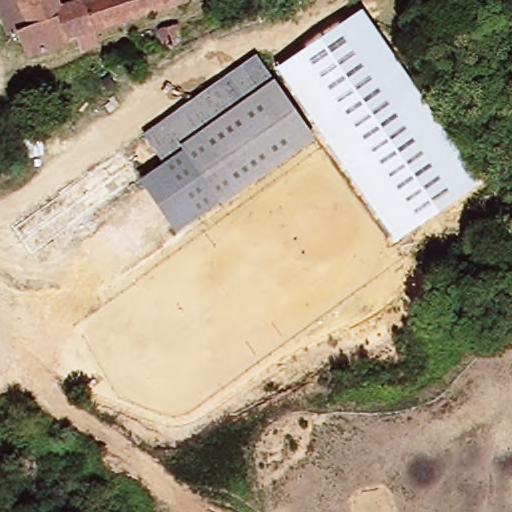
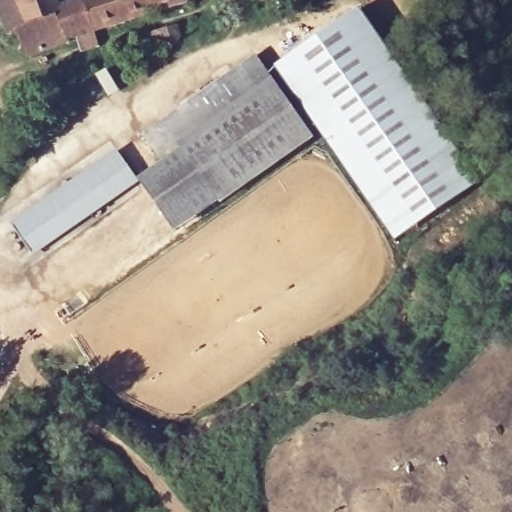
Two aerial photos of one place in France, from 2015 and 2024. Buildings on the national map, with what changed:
unchanged [(44,70),(31,74),(24,46),(8,49),(0,16),(0,0),(14,0),(25,26),(35,24),(44,70)]
unchanged [(62,14),(97,0),(189,0),(186,1),(188,5),(69,45),(74,62),(44,70),(35,24),(25,26),(14,0),(56,0),(62,14)]
unchanged [(361,9),(480,183),(395,240),(277,67),(361,9)]
unchanged [(150,41),(144,28),(166,20),(171,34),(150,41)]
unchanged [(163,168),(150,145),(143,134),(265,62),(282,91),(286,97),(272,102),(163,168)]
unchanged [(314,142),(169,230),(139,182),(163,168),(272,102),(286,97),(314,142)]
new [(140,184),(36,256),(11,225),(117,150),(140,184)]

